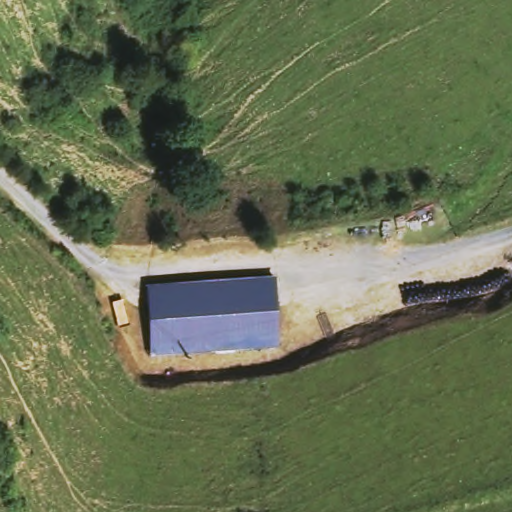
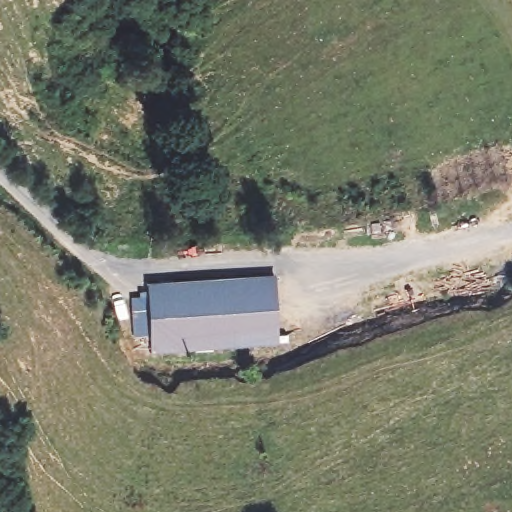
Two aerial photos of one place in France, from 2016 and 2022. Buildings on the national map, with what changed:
unchanged [(278,273),(284,348),(151,355),(150,282),(278,273)]

